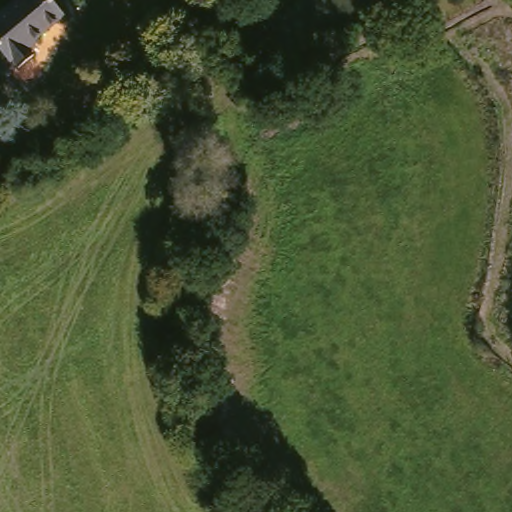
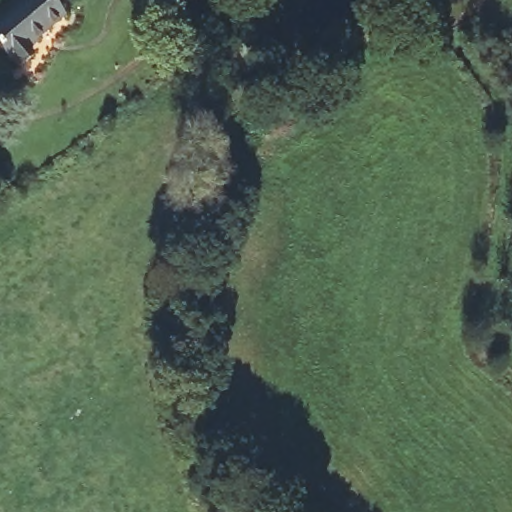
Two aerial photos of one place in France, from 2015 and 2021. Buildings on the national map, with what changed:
unchanged [(21,67),(7,76),(0,64),(0,14),(22,0),(38,0),(55,28),(13,54),(21,67)]

